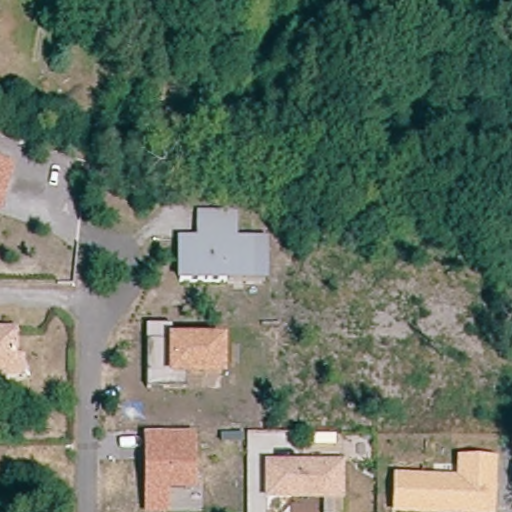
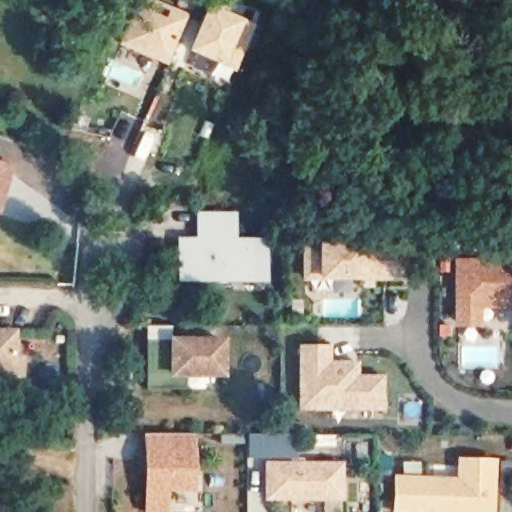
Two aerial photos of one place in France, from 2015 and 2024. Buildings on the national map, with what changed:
new [(137,0),(153,0),(190,15),(168,66),(116,45),(137,0)]
new [(255,28),(237,71),(191,51),(209,8),(255,28)]
unchanged [(10,168),(2,196),(0,196),(0,165),(10,168)]
unchanged [(178,236),(197,236),(198,210),(238,212),(238,236),(268,236),(268,281),(178,280),(178,236)]
new [(319,242),(364,242),(409,241),(410,280),(365,280),(320,280),(304,281),(302,243),(319,242)]
new [(512,309),(482,309),(483,327),(456,327),(455,260),(512,259),(512,309)]
unchanged [(228,337),(227,380),(186,380),(186,389),(145,389),(147,325),(175,325),(175,337),(228,337)]
unchanged [(19,381),(2,380),(2,373),(0,373),(0,337),(13,337),(12,364),(19,364),(19,381)]
new [(332,346),(332,362),(360,361),(360,375),(385,375),(386,411),(301,411),(299,347),(332,346)]
unchanged [(197,433),(196,491),(172,491),(171,512),(145,512),(147,434),(197,433)]
unchanged [(266,458),(343,459),(344,500),(267,499),(266,458)]
unchanged [(456,476),(457,458),(498,459),(497,512),(392,512),(394,474),(456,476)]

